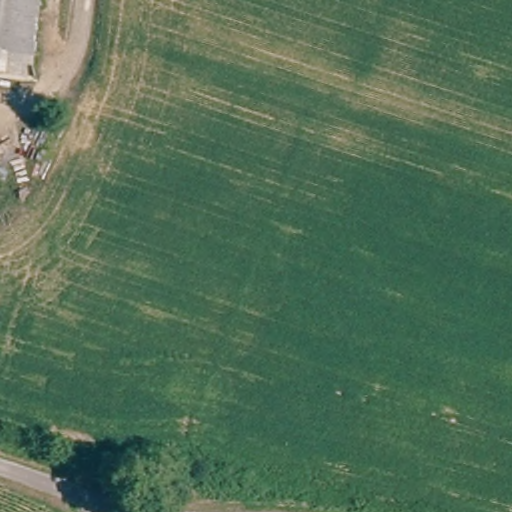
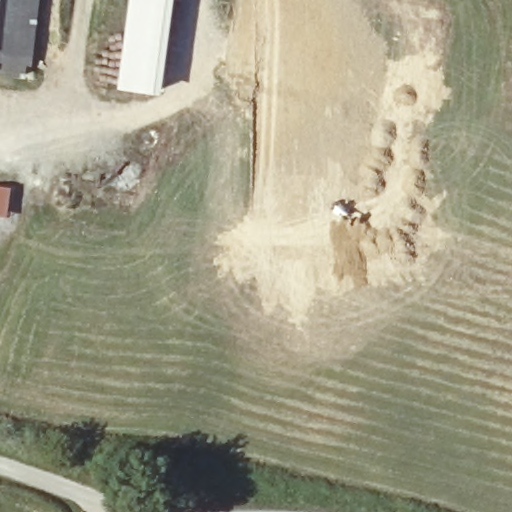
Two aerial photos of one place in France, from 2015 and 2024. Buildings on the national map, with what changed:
unchanged [(0,62),(0,0),(36,0),(29,64),(0,62)]
new [(176,0),(173,20),(160,94),(116,89),(128,0),(176,0)]
new [(10,219),(0,217),(0,189),(13,190),(10,219)]

